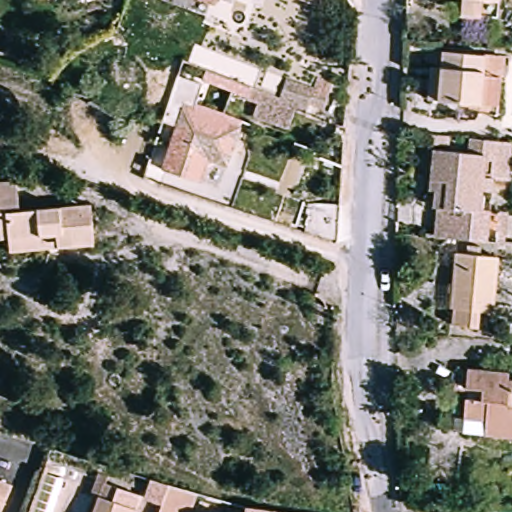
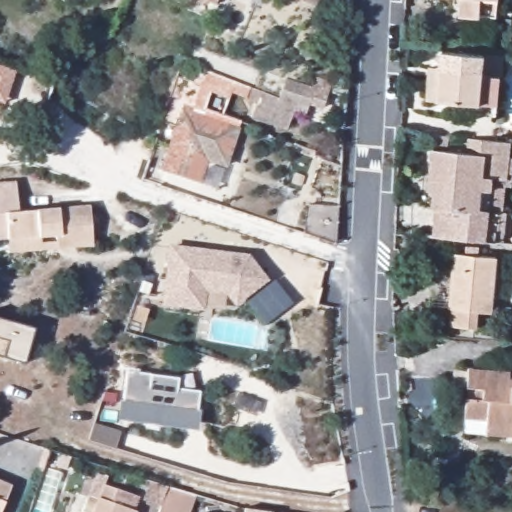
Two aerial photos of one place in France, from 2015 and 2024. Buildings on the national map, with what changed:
unchanged [(213,2),(207,0),(213,0),(213,2)]
unchanged [(501,6),(452,0),(501,0),(501,6)]
unchanged [(424,70),(435,70),(438,47),(477,52),(476,82),(491,85),(489,115),(473,113),(474,103),(435,98),(422,97),(424,70)]
new [(14,73),(4,107),(0,105),(0,69),(14,73)]
unchanged [(277,97),(283,77),(309,85),(312,75),(346,82),(346,84),(345,92),(328,89),(322,106),(308,101),(307,106),(279,97),(277,97)]
unchanged [(277,97),(279,97),(307,106),(305,112),(291,111),(285,130),(250,119),(254,104),(243,101),(247,87),(277,97)]
unchanged [(185,95),(196,97),(193,110),(240,123),(229,162),(216,159),(207,162),(202,180),(163,169),(185,95)]
unchanged [(511,141),(508,183),(489,181),(486,211),(496,212),(493,240),(458,237),(435,235),(438,206),(429,205),(431,181),(423,179),(425,150),(466,152),(467,137),(511,141)]
unchanged [(0,248),(0,181),(16,182),(18,205),(76,197),(82,228),(85,244),(65,246),(48,247),(1,252),(0,248)]
unchanged [(314,204),(339,207),(338,246),(305,236),(314,204)]
new [(202,311),(160,306),(167,245),(249,254),(268,281),(234,307),(226,296),(205,292),(202,311)]
unchanged [(476,312),(471,327),(444,321),(458,254),(498,262),(487,315),(476,312)]
new [(263,326),(245,302),(274,280),(291,303),(263,326)]
new [(33,329),(23,365),(0,358),(0,320),(33,329)]
unchanged [(512,369),(512,384),(511,384),(511,379),(471,373),(472,365),(512,369)]
new [(125,373),(177,380),(176,390),(198,393),(195,413),(186,412),(184,425),(164,423),(165,415),(120,409),(125,373)]
unchanged [(469,387),(471,373),(511,379),(511,384),(512,384),(512,436),(464,427),(469,387)]
unchanged [(9,483),(0,505),(0,480),(9,483)]
new [(157,505),(141,501),(147,482),(164,487),(157,505)]
unchanged [(125,495),(121,509),(129,512),(91,512),(101,487),(125,495)]
unchanged [(198,497),(191,512),(159,512),(169,488),(198,497)]
unchanged [(285,512),(244,512),(245,506),(285,512)]

